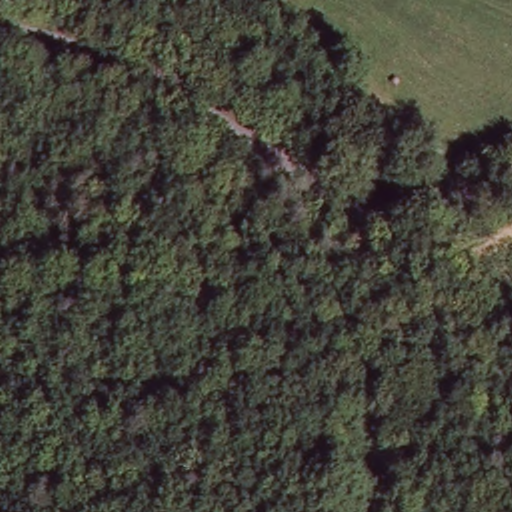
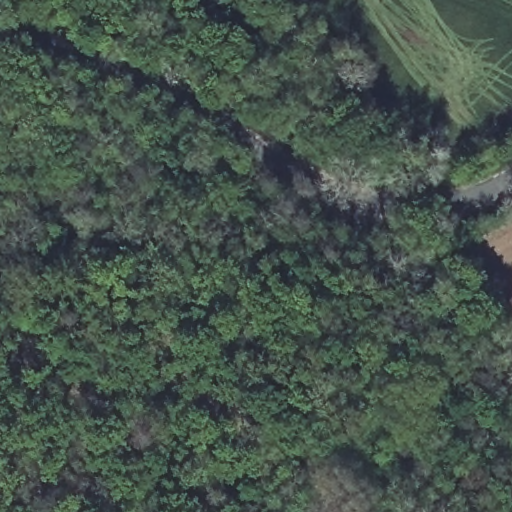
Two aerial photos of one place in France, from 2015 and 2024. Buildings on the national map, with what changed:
[]

